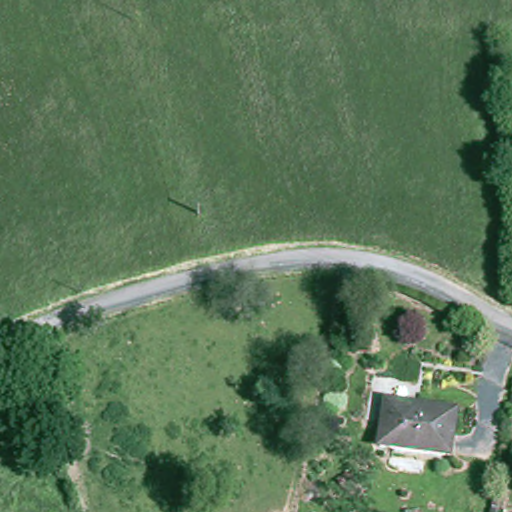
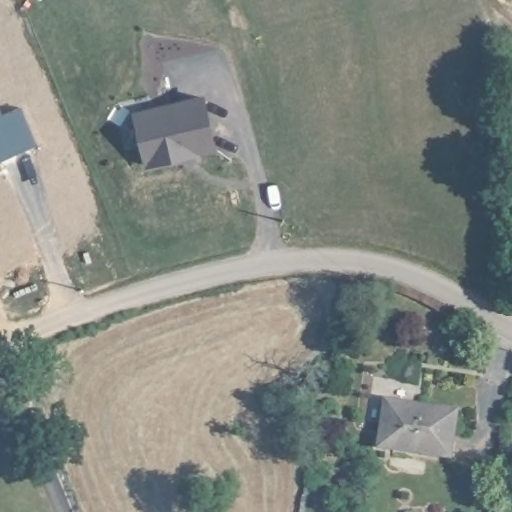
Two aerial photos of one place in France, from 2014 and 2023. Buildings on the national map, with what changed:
new [(204,96),(218,152),(144,169),(132,112),(204,96)]
new [(21,109),(37,147),(0,164),(0,113),(2,117),(21,109)]
unchanged [(387,401),(457,411),(450,457),(380,447),(387,401)]

